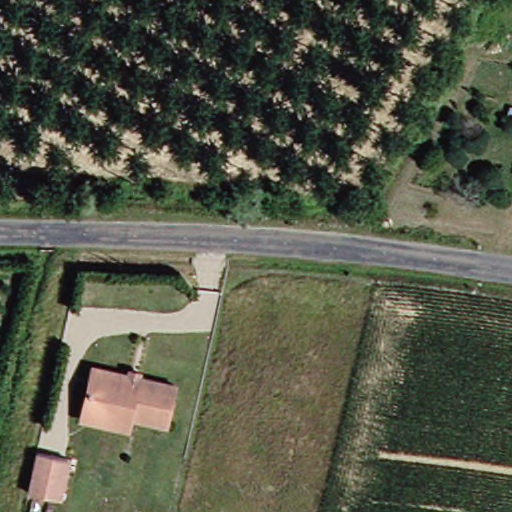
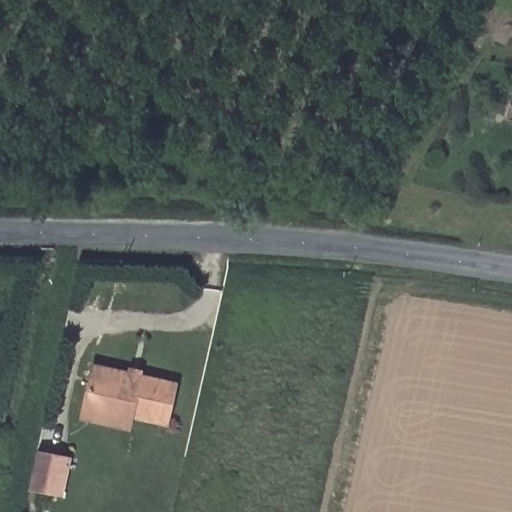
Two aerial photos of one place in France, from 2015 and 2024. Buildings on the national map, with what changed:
unchanged [(85,412),(87,400),(97,360),(178,378),(169,417),(134,410),(132,422),(85,412)]
unchanged [(41,445),(71,450),(63,490),(32,484),(41,445)]

